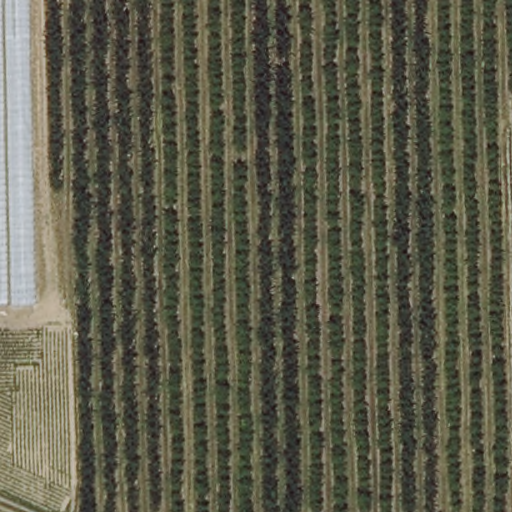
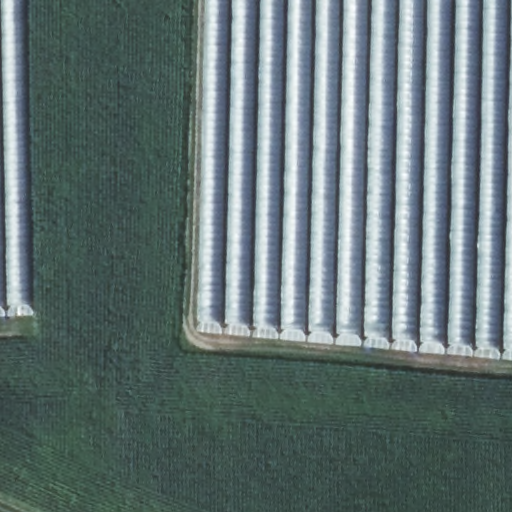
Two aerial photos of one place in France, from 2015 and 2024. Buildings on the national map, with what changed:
unchanged [(32,303),(0,305),(0,0),(25,0),(32,303)]
new [(512,361),(195,332),(202,0),(512,0),(512,361)]

